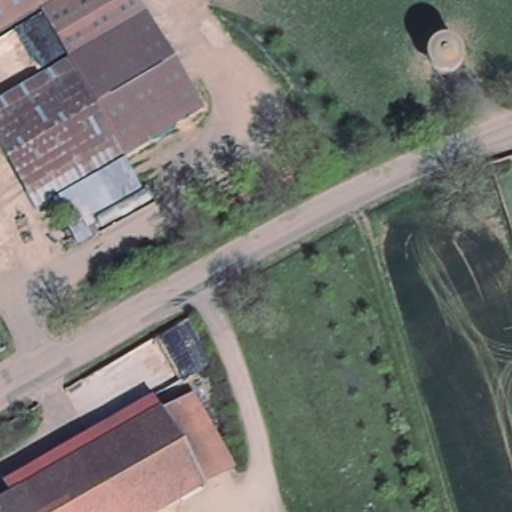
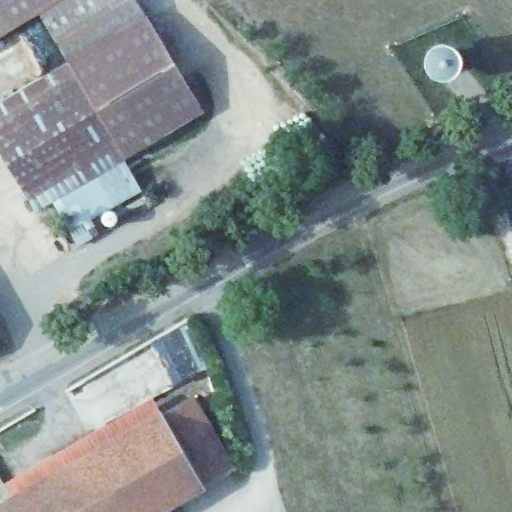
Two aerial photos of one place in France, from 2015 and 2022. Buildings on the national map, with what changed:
unchanged [(41,13),(0,38),(0,0),(61,0),(41,13)]
unchanged [(61,0),(138,0),(148,17),(71,64),(41,13),(61,0)]
unchanged [(71,64),(148,17),(204,111),(125,158),(70,65),(71,64)]
unchanged [(39,210),(0,146),(0,107),(70,65),(125,158),(39,210)]
unchanged [(141,190),(93,219),(101,233),(83,244),(58,203),(124,163),(141,190)]
unchanged [(191,393),(235,464),(161,508),(144,481),(123,493),(96,448),(191,393)]
unchanged [(123,493),(144,481),(161,508),(154,512),(21,512),(12,497),(96,448),(123,493)]
unchanged [(21,512),(0,512),(0,504),(12,497),(21,512)]

